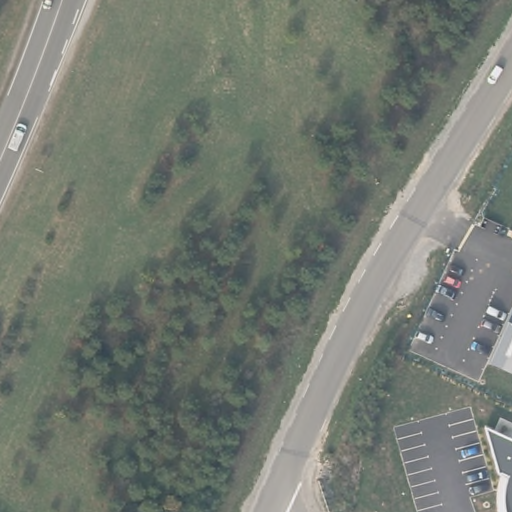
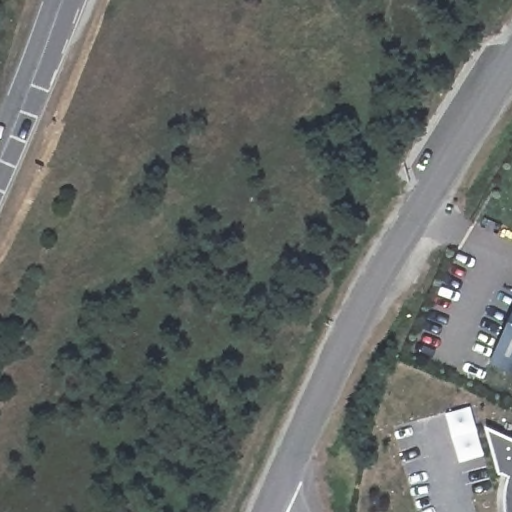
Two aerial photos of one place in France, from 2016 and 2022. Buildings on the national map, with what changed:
unchanged [(493,365),(512,323),(512,374),(493,365)]
unchanged [(505,512),(504,502),(506,489),(510,476),(500,472),(489,429),(512,439),(512,512),(505,512)]

